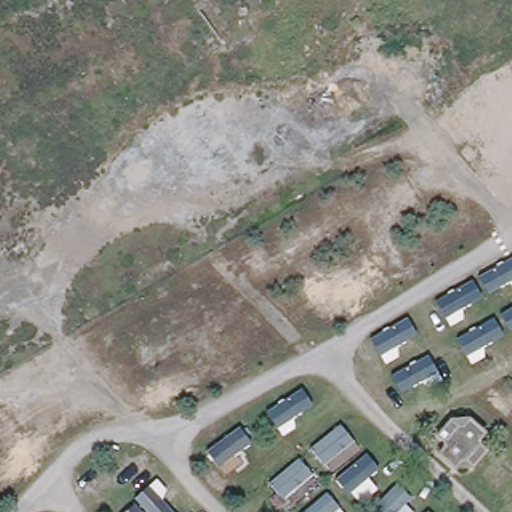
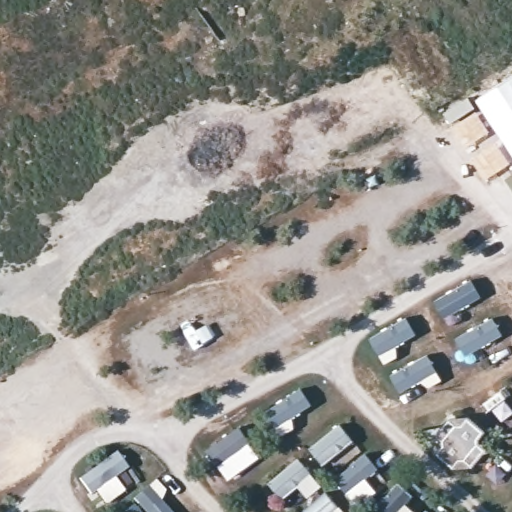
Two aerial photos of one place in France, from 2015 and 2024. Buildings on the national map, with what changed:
new [(477,99),(512,76),(512,152),(477,99)]
unchanged [(449,421),(459,428),(467,419),(483,433),(475,442),(484,449),(470,465),(462,458),(454,467),(438,453),(445,444),(436,435),(449,421)]

